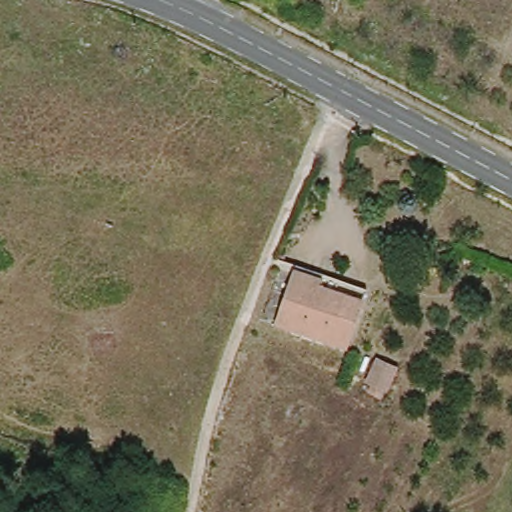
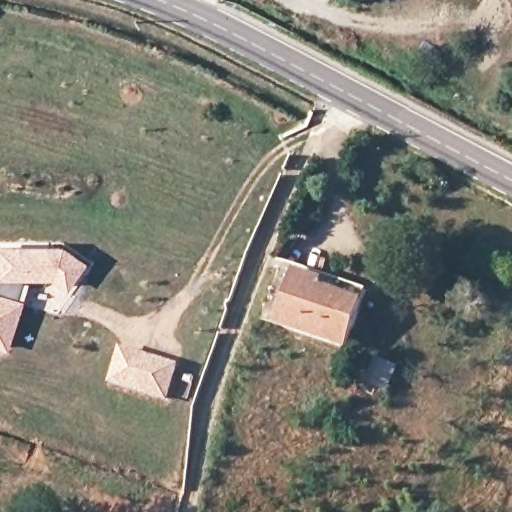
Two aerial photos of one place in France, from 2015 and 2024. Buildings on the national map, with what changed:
new [(0,245),(61,244),(84,262),(64,289),(50,279),(28,280),(21,300),(5,351),(0,349),(0,245)]
unchanged [(297,268),(326,279),(323,286),(366,300),(346,348),(275,322),(297,268)]
new [(109,382),(120,345),(179,364),(168,403),(109,382)]
unchanged [(379,362),(393,367),(385,384),(371,378),(379,362)]
demolished [(372,394),(386,398),(378,416),(364,409),(372,394)]

